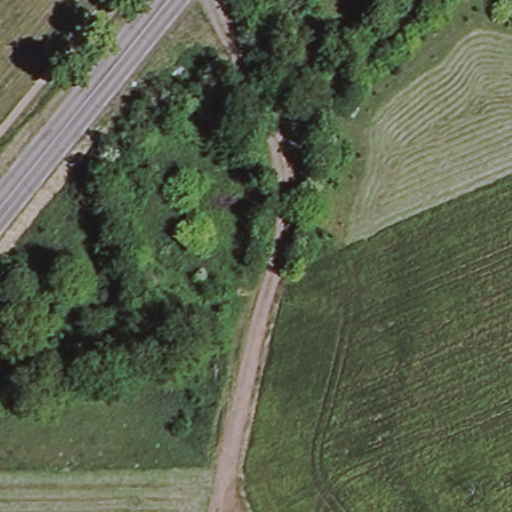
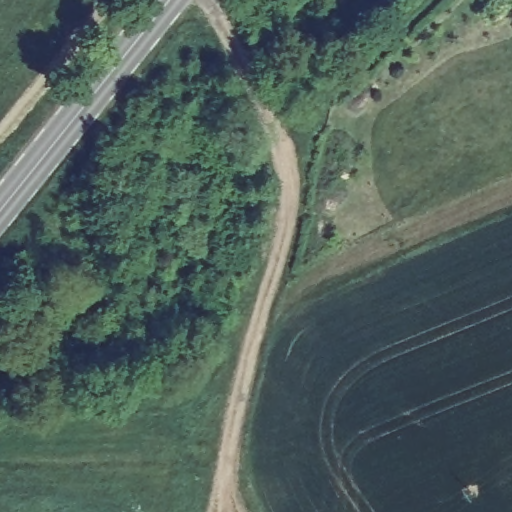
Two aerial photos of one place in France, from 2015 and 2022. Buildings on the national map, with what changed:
unchanged [(208,315),(159,330),(143,279),(193,264),(208,315)]

